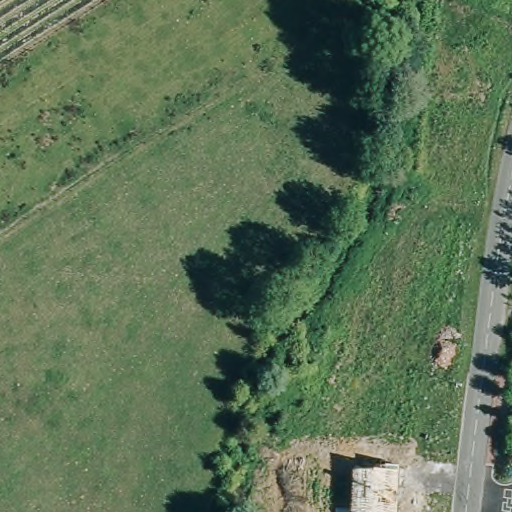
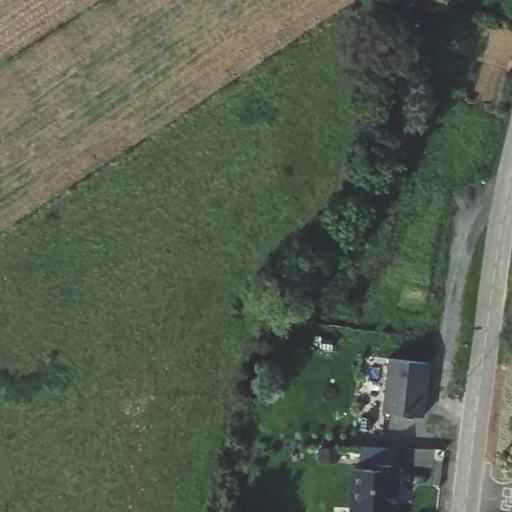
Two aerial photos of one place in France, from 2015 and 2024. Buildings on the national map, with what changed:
new [(425,417),(383,411),(389,357),(431,362),(425,417)]
unchanged [(396,512),(351,512),(353,464),(398,465),(396,512)]

